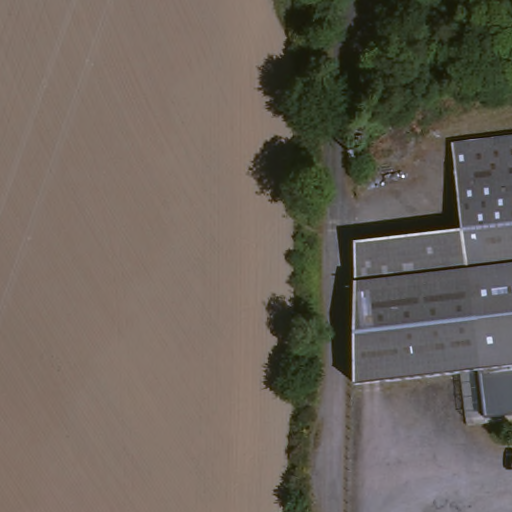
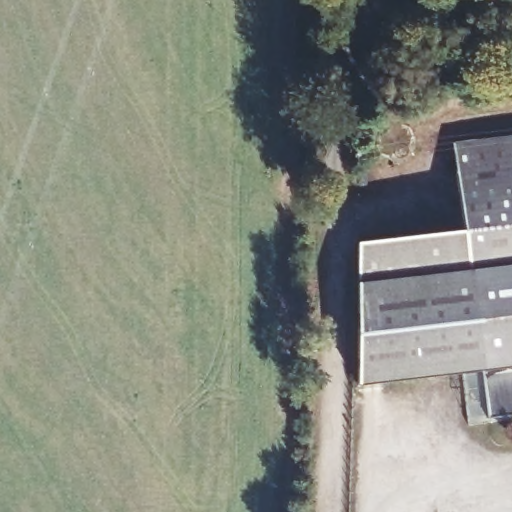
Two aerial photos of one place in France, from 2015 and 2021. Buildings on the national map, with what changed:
unchanged [(488,415),(482,373),(359,389),(356,292),(360,291),(468,275),(461,235),(447,147),(512,139),(512,412),(488,415)]
unchanged [(354,254),(461,235),(468,275),(360,291),(356,292),(354,254)]

